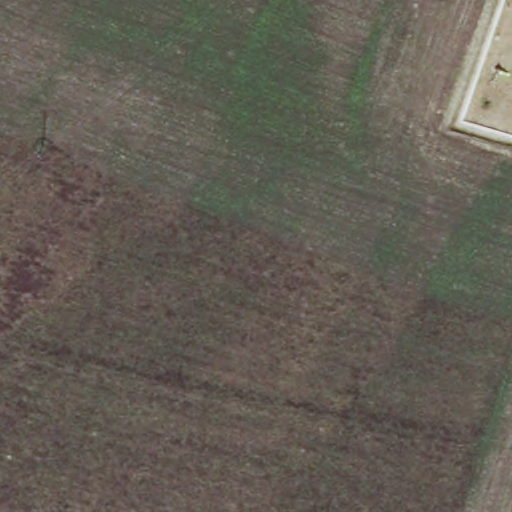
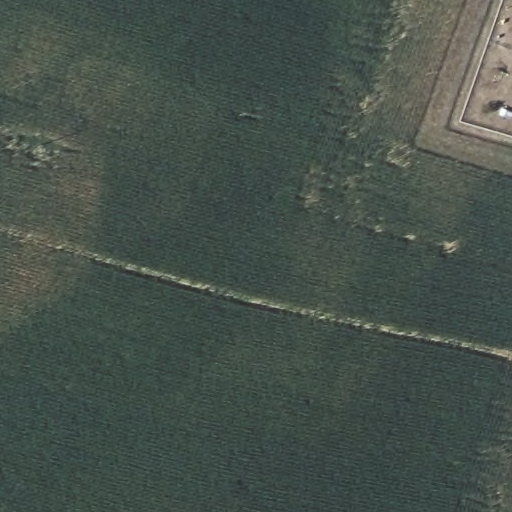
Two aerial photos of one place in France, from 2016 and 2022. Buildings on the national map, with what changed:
unchanged [(502,122),(512,102),(512,127),(502,122)]

